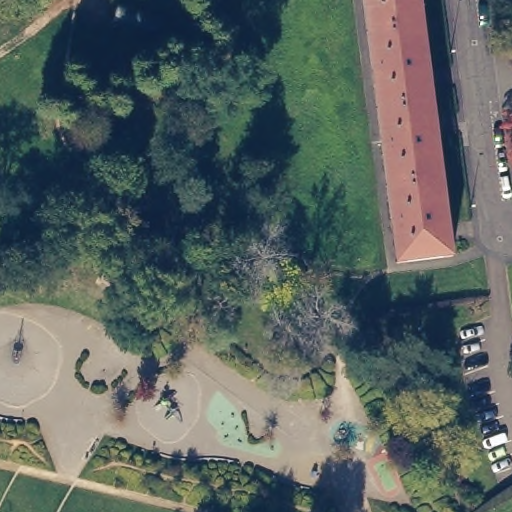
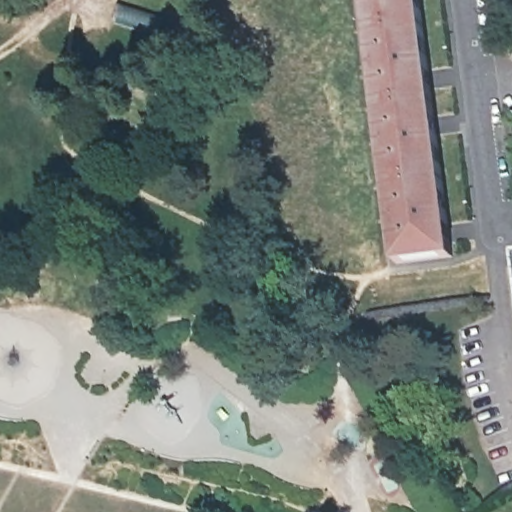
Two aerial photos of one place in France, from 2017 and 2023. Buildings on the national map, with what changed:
unchanged [(452,253),(397,260),(364,0),(420,0),(452,253)]

